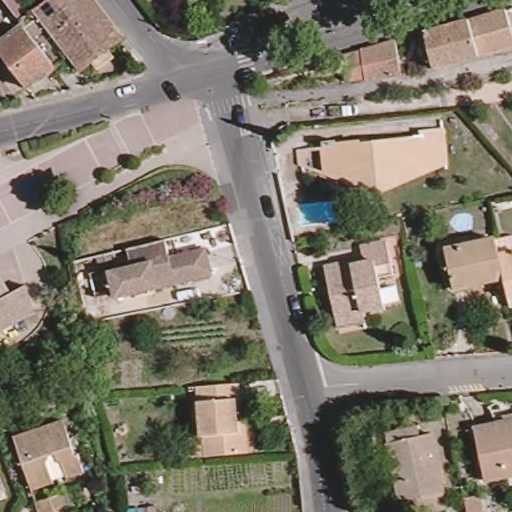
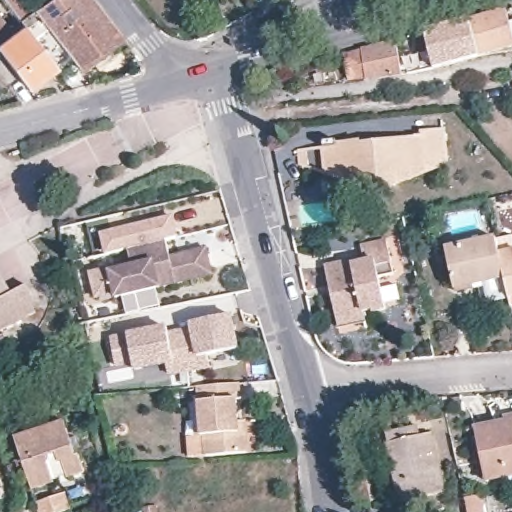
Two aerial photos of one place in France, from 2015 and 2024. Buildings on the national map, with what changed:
unchanged [(10,0),(35,0),(40,7),(50,0),(95,0),(124,37),(85,68),(75,55),(61,66),(29,26),(10,0)]
unchanged [(469,14),(507,3),(512,21),(512,41),(481,50),(479,47),(469,14)]
unchanged [(1,45),(0,44),(0,13),(17,34),(29,26),(61,66),(34,87),(1,45)]
unchanged [(479,47),(435,62),(426,27),(469,14),(479,47)]
unchanged [(402,74),(349,81),(344,54),(397,40),(402,74)]
unchanged [(383,142),(399,140),(399,136),(408,136),(408,139),(415,137),(415,135),(423,134),(423,129),(443,127),(446,152),(447,162),(426,164),(427,171),(411,172),(412,178),(396,180),(396,185),(387,186),(387,187),(379,187),(379,183),(362,185),(361,177),(345,179),(344,172),(328,173),(325,146),(325,141),(336,140),(337,142),(360,141),(361,146),(374,145),(373,139),(382,138),(383,142)]
new [(107,252),(103,234),(173,217),(177,235),(127,247),(107,252)]
unchanged [(500,253),(505,277),(456,287),(447,248),(497,237),(500,253)]
unchanged [(111,270),(133,265),(129,247),(168,239),(172,253),(211,244),(217,272),(161,283),(162,286),(118,295),(111,270)]
unchanged [(362,247),(388,241),(394,273),(379,277),(386,306),(386,308),(374,311),(373,308),(364,310),(365,317),(339,323),(326,267),(347,262),(347,266),(365,262),(362,247)]
unchanged [(505,277),(500,253),(512,251),(512,306),(505,277)]
unchanged [(5,293),(21,287),(33,312),(0,328),(0,283),(5,293)]
new [(195,341),(191,322),(230,315),(238,347),(207,354),(210,366),(188,370),(183,343),(195,341)]
new [(166,327),(170,346),(183,343),(188,370),(169,372),(167,362),(135,368),(134,360),(117,363),(112,337),(166,327)]
unchanged [(249,426),(250,447),(209,450),(207,429),(202,428),(199,381),(241,376),(243,393),(240,395),(243,426),(249,426)]
unchanged [(71,452),(75,451),(80,466),(63,472),(58,457),(54,457),(50,446),(44,448),(44,460),(50,477),(28,484),(10,433),(59,417),(71,452)]
unchanged [(491,481),(480,427),(512,420),(512,476),(491,481)]
unchanged [(452,507),(430,512),(423,512),(420,499),(408,502),(395,443),(391,433),(423,426),(425,436),(436,433),(452,507)]
unchanged [(2,485),(0,486),(0,481),(2,485)]
unchanged [(37,503),(66,494),(71,509),(63,512),(40,512),(37,503)]

